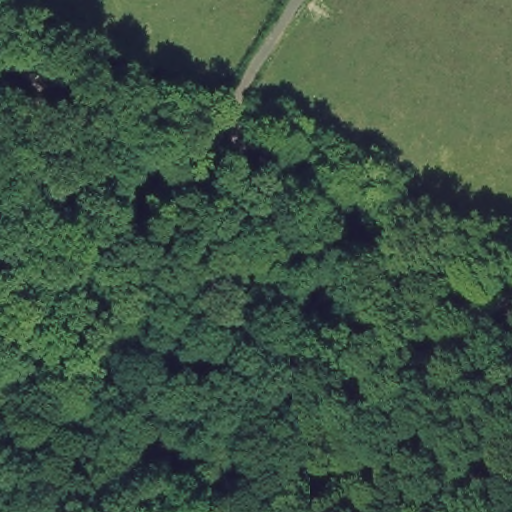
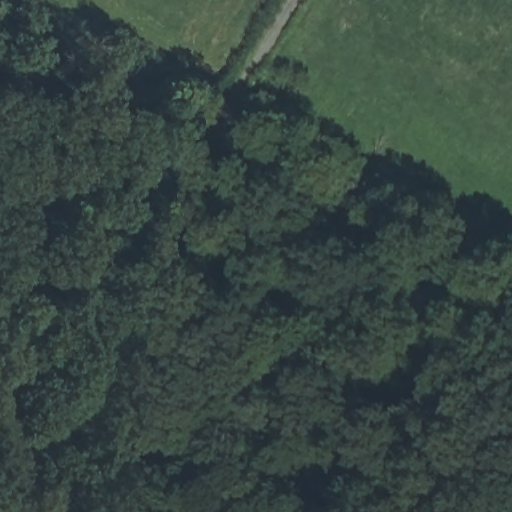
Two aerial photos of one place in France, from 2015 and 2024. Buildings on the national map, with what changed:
[]

